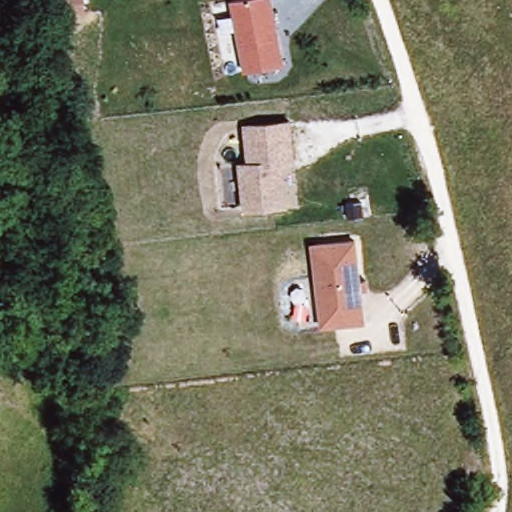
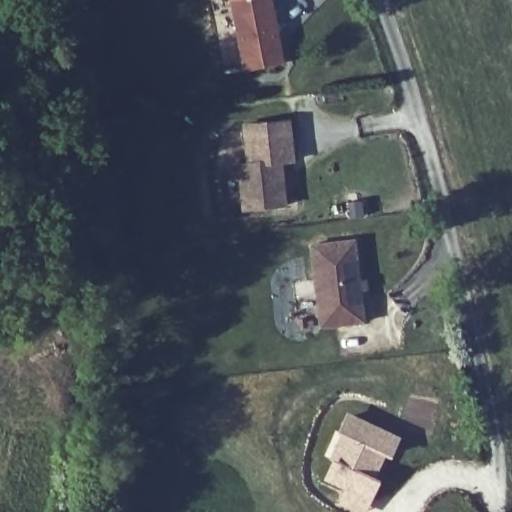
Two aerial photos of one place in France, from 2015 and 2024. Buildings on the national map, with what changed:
unchanged [(87,0),(87,6),(65,7),(65,0),(87,0)]
unchanged [(250,71),(238,0),(278,0),(288,65),(250,71)]
unchanged [(284,161),(272,164),(276,207),(236,212),(231,167),(239,165),(235,127),(280,122),(284,161)]
unchanged [(305,247),(348,242),(353,282),(360,281),(360,290),(354,291),(358,323),(329,327),(314,330),(312,315),(305,247)]
new [(325,480),(343,435),(338,432),(348,412),(401,437),(392,457),(380,482),(371,499),(366,512),(355,512),(341,506),(347,491),(325,480)]

